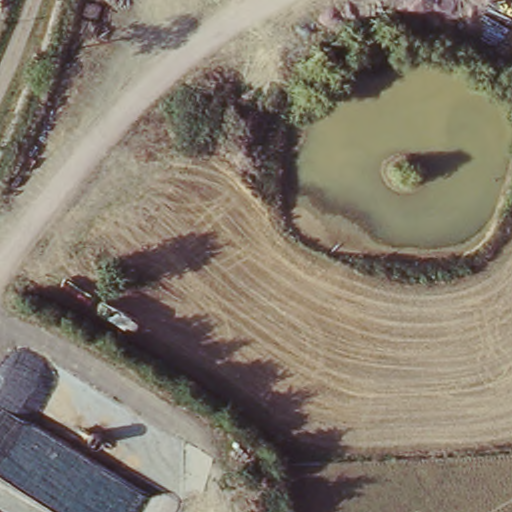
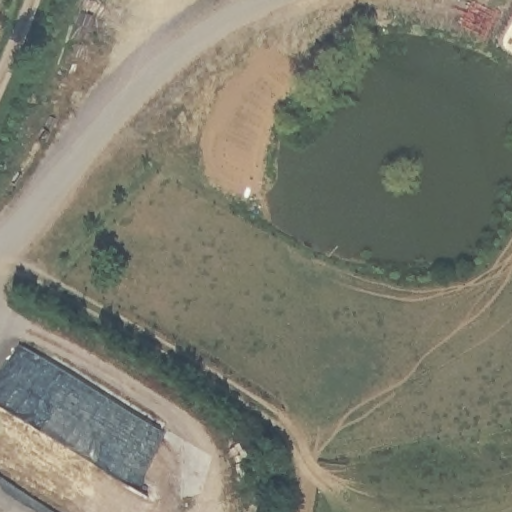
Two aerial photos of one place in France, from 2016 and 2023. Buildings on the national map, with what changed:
[]

